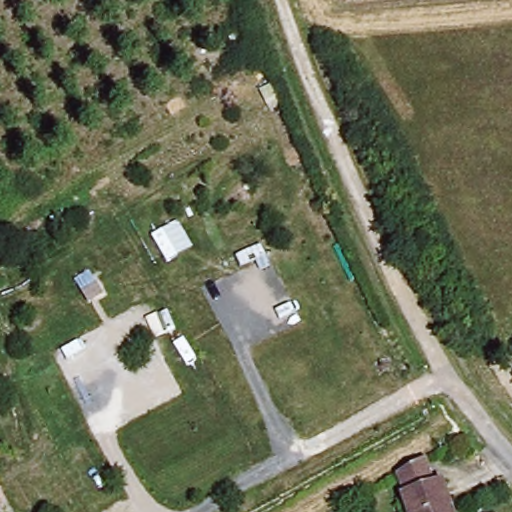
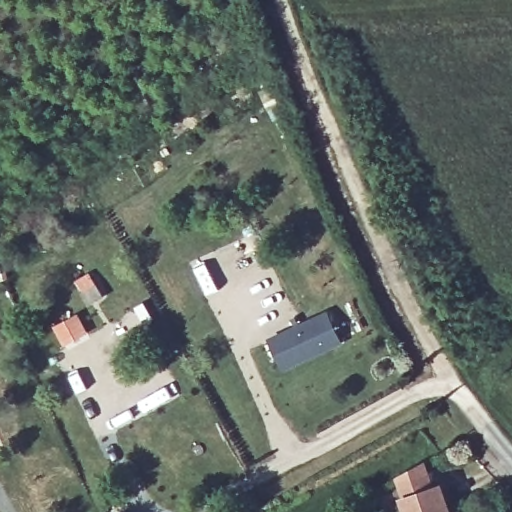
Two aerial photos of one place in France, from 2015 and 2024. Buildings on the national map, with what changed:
new [(326,312),(342,345),(281,372),(267,340),(326,312)]
demolished [(89,350),(104,377),(75,392),(62,366),(89,350)]
unchanged [(410,512),(405,500),(409,498),(402,480),(429,466),(437,487),(446,485),(456,512),(410,512)]

